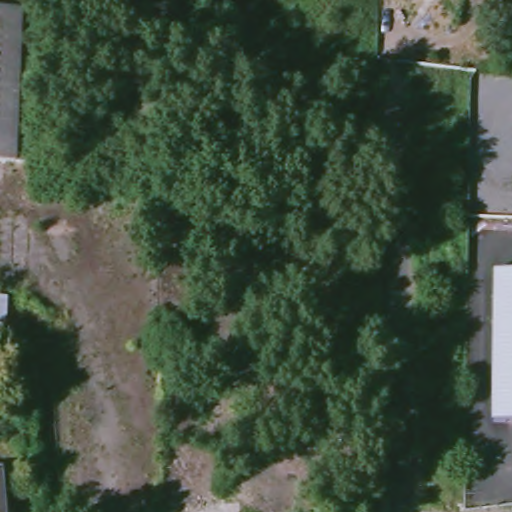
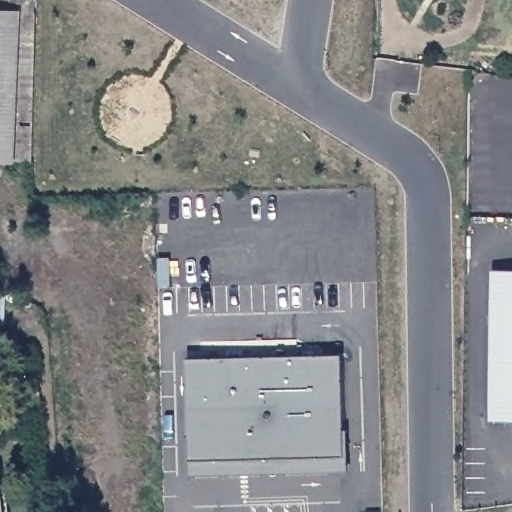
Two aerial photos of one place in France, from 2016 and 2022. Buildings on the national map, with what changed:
unchanged [(36,1),(35,20),(0,20),(0,0),(36,1)]
unchanged [(33,169),(0,169),(0,20),(35,20),(33,169)]
unchanged [(512,272),(512,423),(487,423),(490,271),(512,272)]
unchanged [(7,296),(7,320),(0,320),(0,295),(7,296)]
new [(332,356),(333,459),(178,461),(177,357),(332,356)]
new [(333,459),(333,474),(179,476),(178,461),(333,459)]
unchanged [(1,512),(0,512),(0,501),(1,512)]

